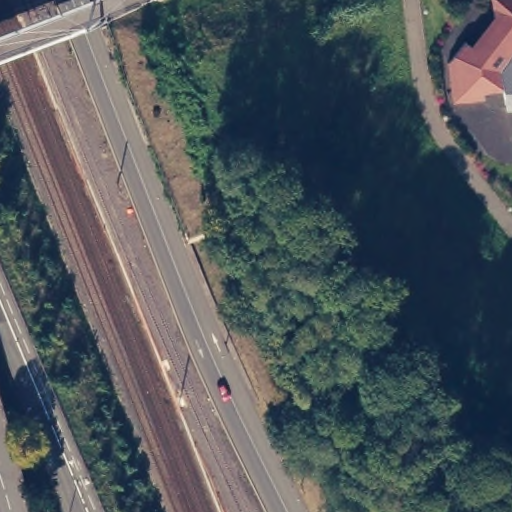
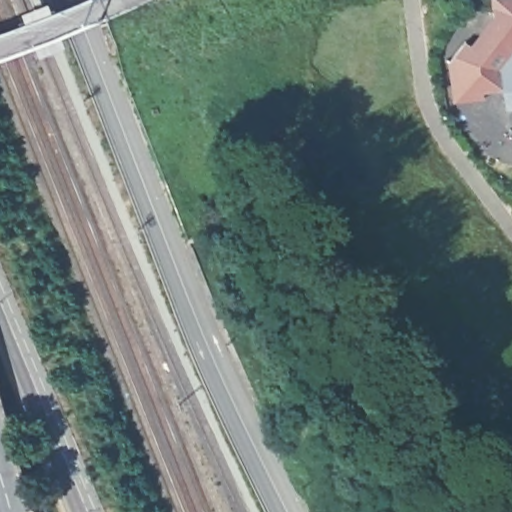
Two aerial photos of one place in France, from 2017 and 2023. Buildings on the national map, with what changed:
unchanged [(455,98),(449,59),(465,37),(477,45),(495,21),(492,0),(512,0),(512,103),(507,104),(505,85),(484,87),(484,94),(467,97),(455,98)]

